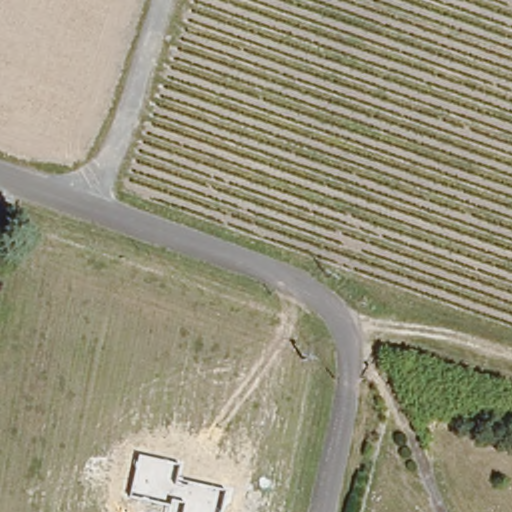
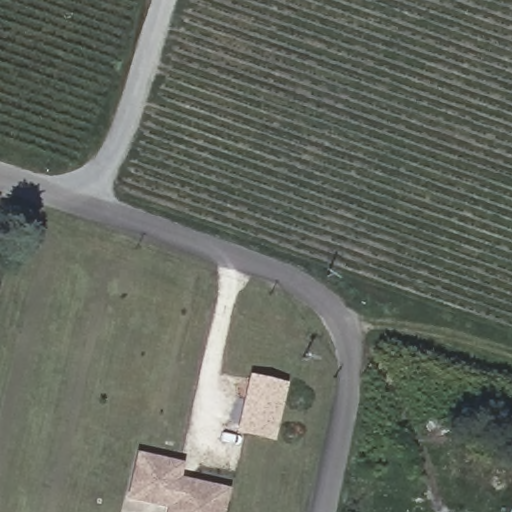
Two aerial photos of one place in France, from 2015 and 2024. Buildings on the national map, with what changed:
new [(249,374),(287,382),(274,442),(235,433),(249,374)]
new [(126,500),(136,452),(184,462),(181,477),(229,487),(224,512),(166,512),(166,509),(126,500)]

